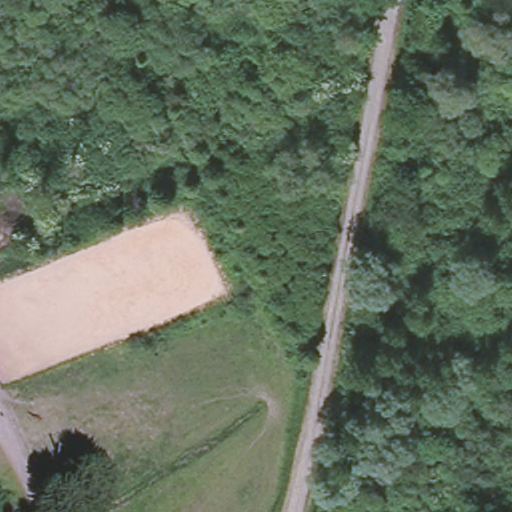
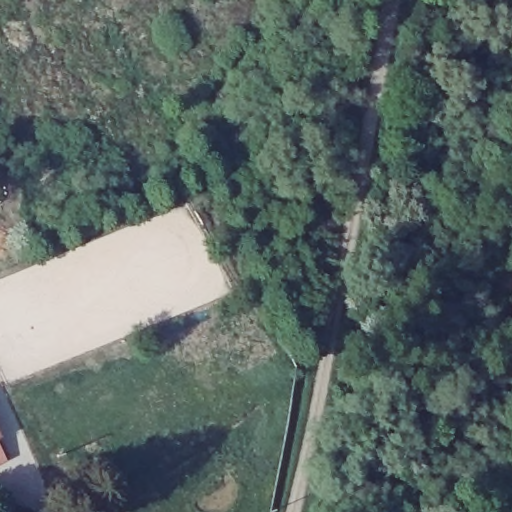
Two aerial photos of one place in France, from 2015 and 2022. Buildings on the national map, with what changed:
unchanged [(430,66),(410,67),(416,37),(432,36),(430,66)]

